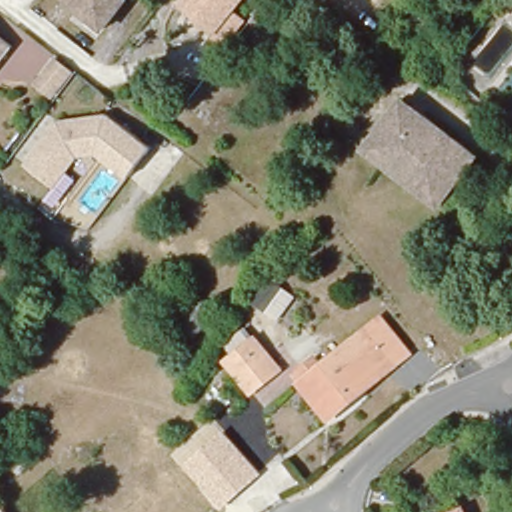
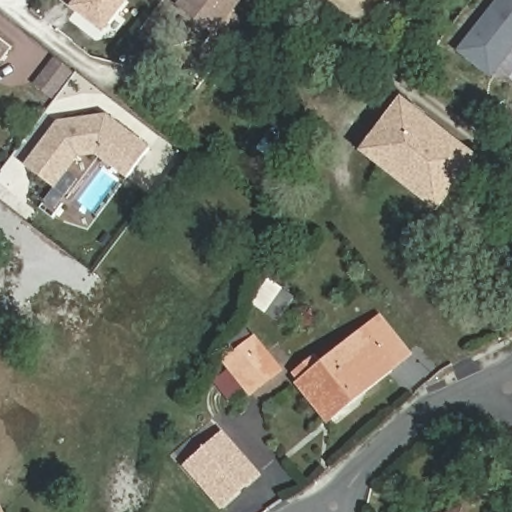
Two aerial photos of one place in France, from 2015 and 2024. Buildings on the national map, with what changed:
unchanged [(68,0),(125,0),(130,3),(107,33),(66,2),(68,0)]
unchanged [(248,23),(226,50),(211,38),(203,47),(165,18),(180,0),(244,0),(236,12),(248,23)]
new [(461,49),(498,0),(512,0),(512,46),(492,72),(461,49)]
unchanged [(12,51),(0,66),(0,42),(12,51)]
unchanged [(54,102),(37,87),(53,59),(75,75),(54,102)]
unchanged [(467,163),(438,201),(371,149),(400,111),(467,163)]
unchanged [(57,120),(106,114),(149,147),(127,177),(95,153),(77,155),(54,187),(24,164),(57,120)]
unchanged [(164,322),(180,290),(214,307),(198,340),(164,322)]
unchanged [(301,378),(294,370),(307,359),(314,366),(364,323),(370,318),(404,359),(389,372),(326,425),(292,385),(301,378)]
unchanged [(281,365),(246,397),(227,376),(245,360),(235,349),(254,334),(281,365)]
unchanged [(220,504),(185,461),(223,428),(259,470),(220,504)]

